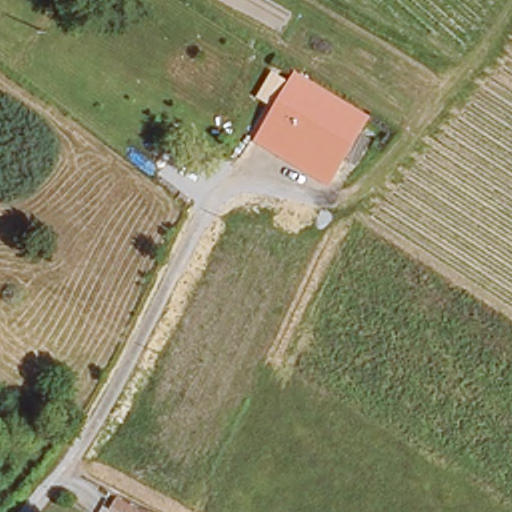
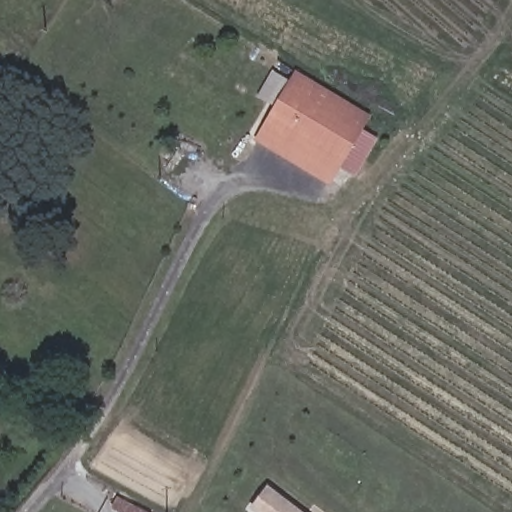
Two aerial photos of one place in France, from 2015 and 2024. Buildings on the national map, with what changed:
unchanged [(325,186),(254,142),(275,106),(257,95),(274,69),(292,81),(293,77),(364,121),(325,186)]
new [(250,510),(269,486),(303,512),(253,512),(250,510)]
new [(111,508),(117,496),(147,512),(118,512),(111,508)]

